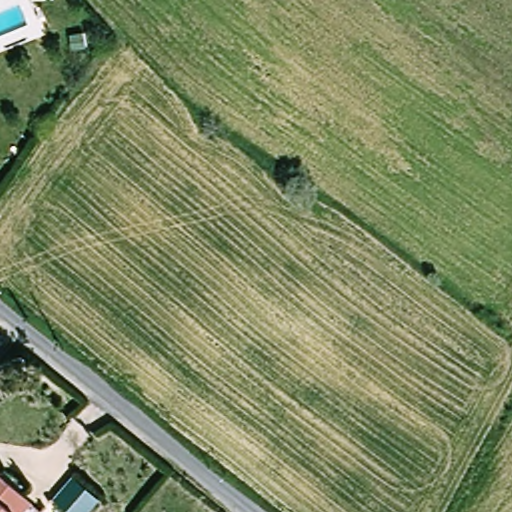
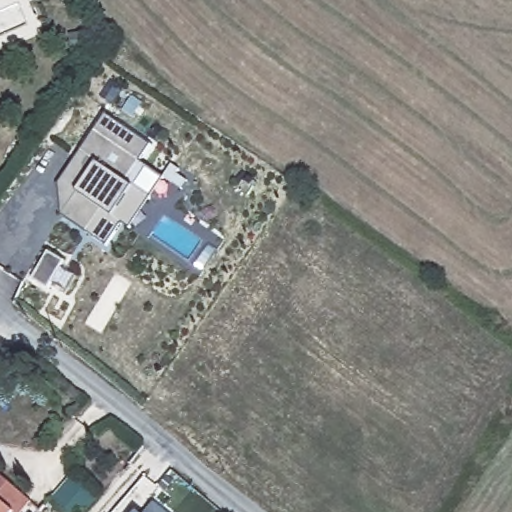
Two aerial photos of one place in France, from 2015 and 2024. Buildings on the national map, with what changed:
new [(82,182),(81,165),(86,158),(78,153),(103,115),(150,146),(138,163),(125,182),(133,188),(111,220),(120,225),(104,249),(83,235),(98,211),(73,195),(82,182)]
new [(78,153),(86,158),(81,165),(82,182),(73,195),(98,211),(83,235),(58,218),(56,184),(78,153)]
new [(133,188),(125,182),(138,163),(163,179),(128,231),(120,225),(111,220),(133,188)]
new [(66,293),(52,286),(48,292),(32,283),(48,254),(65,263),(61,270),(75,278),(66,293)]
unchanged [(35,502),(26,512),(0,512),(0,472),(31,498),(35,502)]
new [(168,512),(142,512),(151,499),(168,512)]
new [(138,512),(134,512),(136,510),(138,512)]

